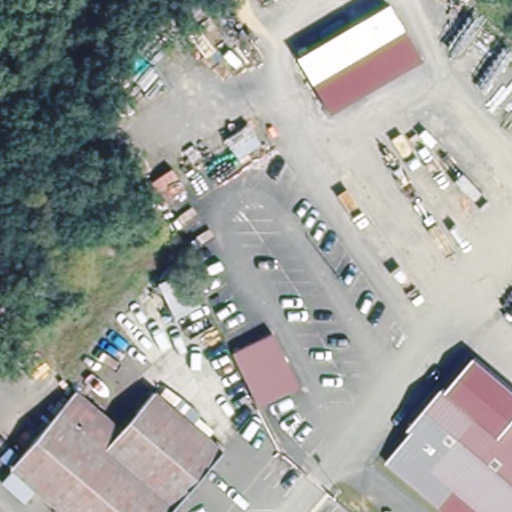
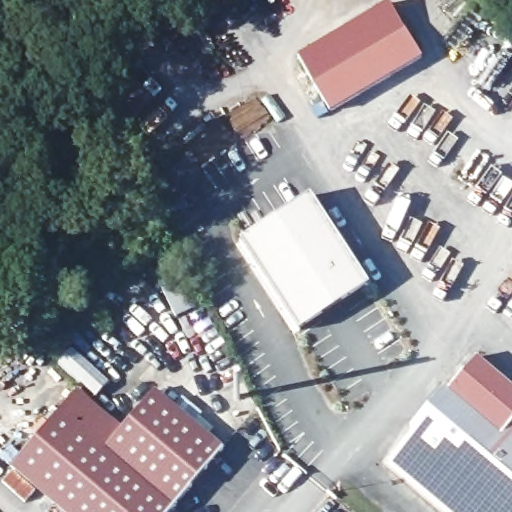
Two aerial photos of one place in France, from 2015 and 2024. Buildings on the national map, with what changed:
unchanged [(296,55),(391,1),(425,59),(332,114),(296,55)]
new [(240,239),(310,194),(368,284),(299,329),(240,239)]
demolished [(234,353),(274,334),(299,387),(260,407),(234,353)]
unchanged [(384,464),(412,432),(407,427),(414,419),(420,422),(436,404),(431,399),(439,389),(443,392),(471,358),(512,392),(512,420),(509,424),(512,427),(512,512),(441,512),(384,464)]
unchanged [(119,429),(152,392),(209,442),(213,439),(222,447),(166,512),(62,512),(10,468),(76,391),(119,429)]

